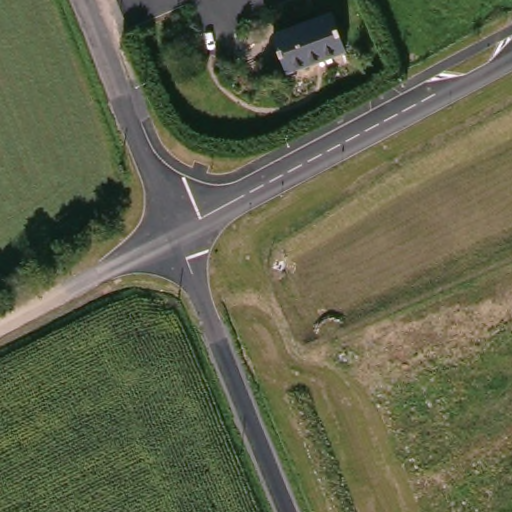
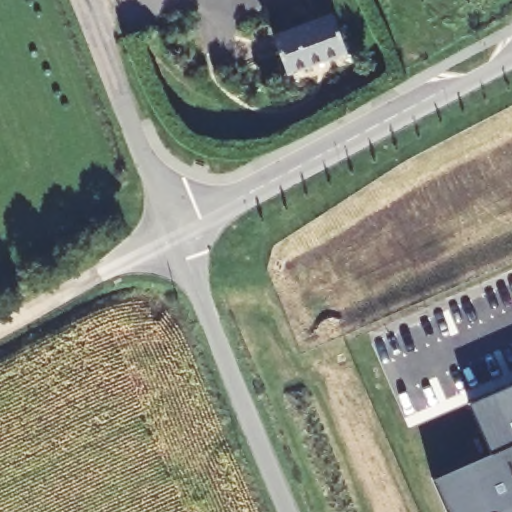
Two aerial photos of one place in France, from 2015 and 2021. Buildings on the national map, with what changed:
unchanged [(333,10),(349,51),(290,71),(277,30),(333,10)]
new [(484,438),(470,405),(482,400),(512,387),(512,512),(447,512),(433,481),(491,456),(484,438)]

